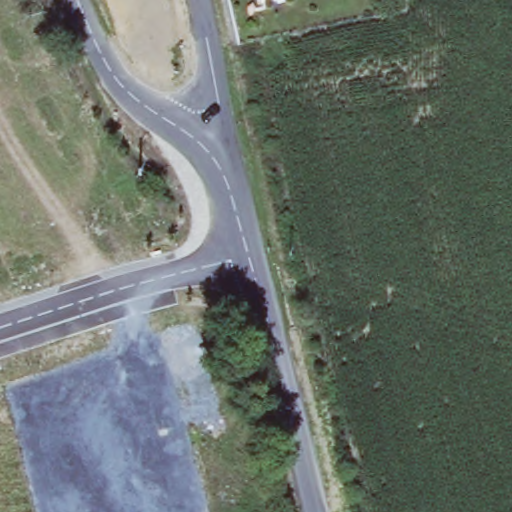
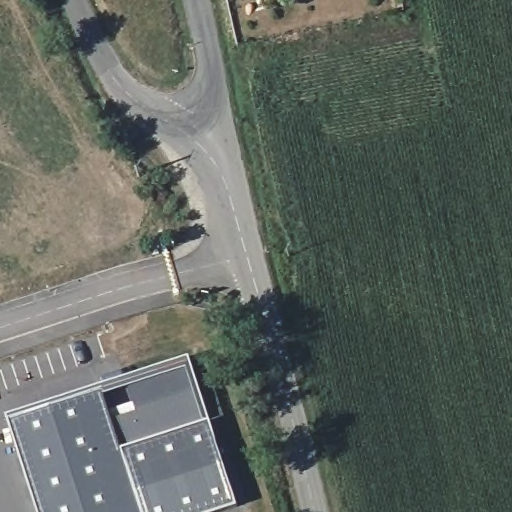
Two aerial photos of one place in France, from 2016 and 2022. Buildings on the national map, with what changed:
new [(209,403),(205,405),(204,403),(120,430),(121,432),(147,512),(136,512),(92,375),(189,344),(209,403)]
new [(92,375),(136,512),(42,512),(7,403),(92,375)]
new [(205,405),(209,403),(237,489),(164,512),(147,512),(121,432),(205,405)]

